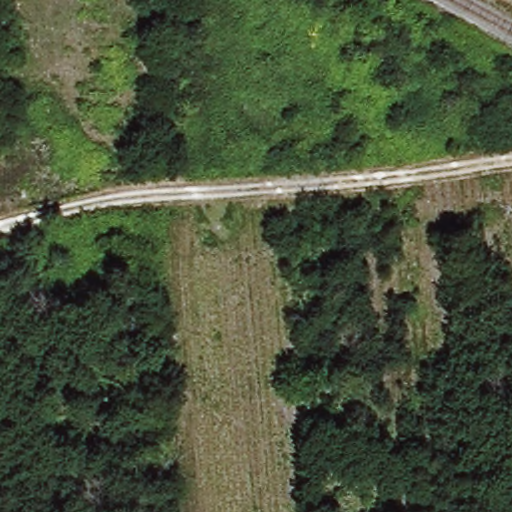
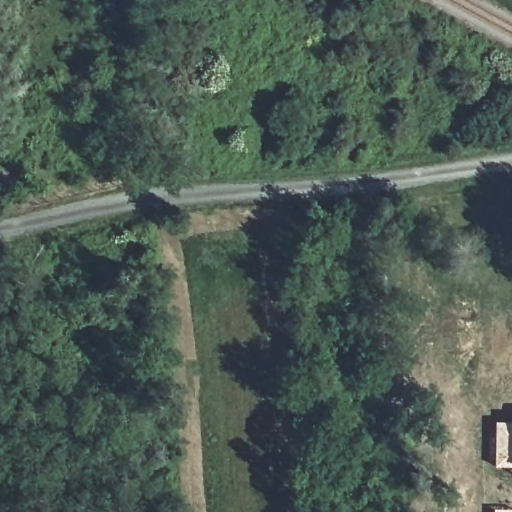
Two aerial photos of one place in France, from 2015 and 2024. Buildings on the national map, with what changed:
new [(494,420),(512,420),(512,467),(493,467),(494,420)]
new [(493,508),(512,508),(512,512),(493,512),(493,508)]

